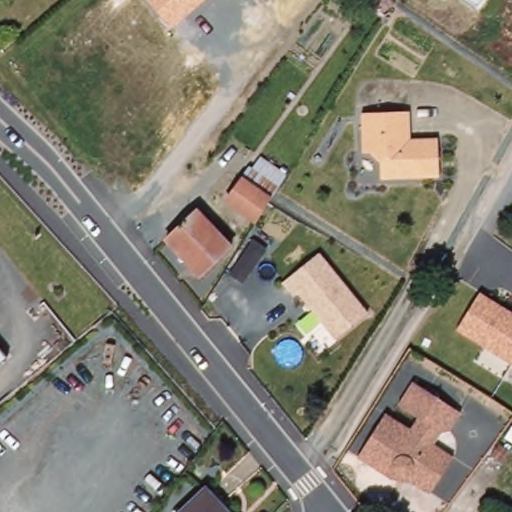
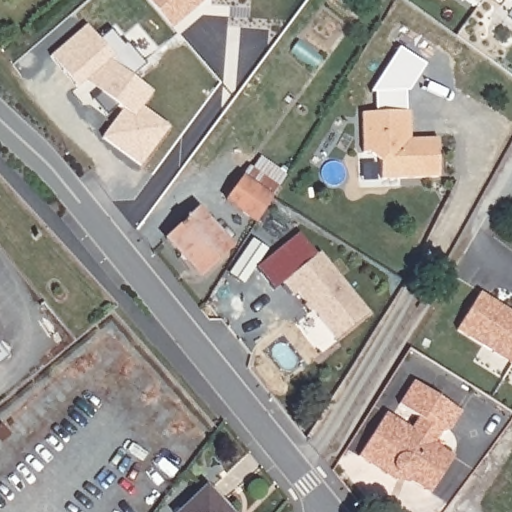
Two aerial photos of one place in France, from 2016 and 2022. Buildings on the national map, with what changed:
unchanged [(147,0),(204,0),(170,28),(147,0)]
unchanged [(350,0),(389,0),(392,2),(381,19),(350,0)]
unchanged [(468,0),(484,0),(479,8),(468,0)]
new [(103,92),(89,77),(77,88),(50,57),(86,26),(98,40),(110,30),(126,43),(123,45),(145,65),(131,78),(152,93),(141,107),(169,128),(141,165),(103,138),(123,110),(118,106),(109,114),(106,116),(93,100),(98,96),(103,92)]
unchanged [(382,178),(382,160),(363,149),(362,109),(412,109),(413,136),(439,138),(442,177),(382,178)]
unchanged [(229,203),(250,169),(255,172),(262,160),(289,177),(277,197),(261,223),(229,203)]
unchanged [(199,276),(166,239),(197,212),(229,249),(199,276)]
unchanged [(284,279),(320,249),(369,313),(337,341),(284,279)]
unchanged [(459,330),(480,292),(512,312),(512,364),(459,330)]
unchanged [(415,378),(463,412),(447,436),(443,434),(437,444),(459,457),(433,500),(363,456),(415,378)]
unchanged [(207,487),(229,512),(180,512),(207,487)]

